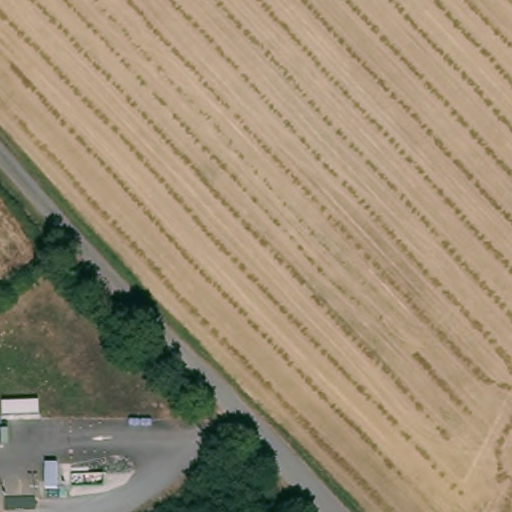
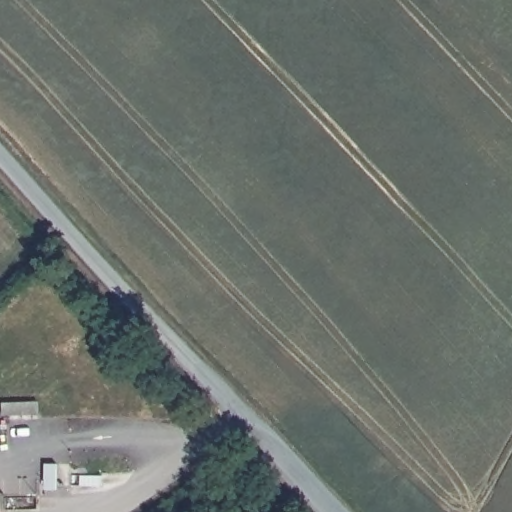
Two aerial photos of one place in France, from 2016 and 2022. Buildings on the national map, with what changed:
unchanged [(80,478),(87,488),(66,502),(60,492),(80,478)]

